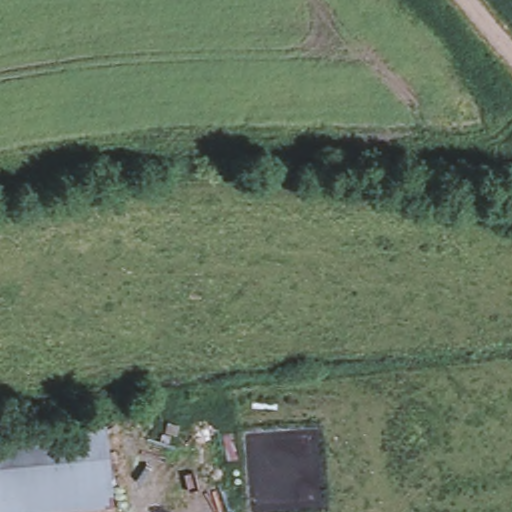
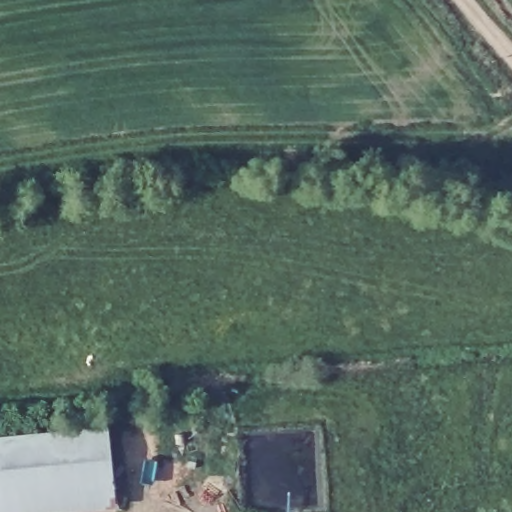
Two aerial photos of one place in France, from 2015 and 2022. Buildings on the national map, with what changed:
unchanged [(109,490),(111,506),(59,512),(0,512),(0,442),(103,432),(109,490)]

